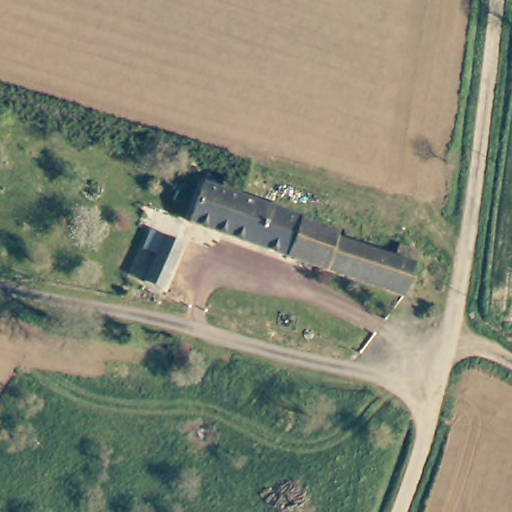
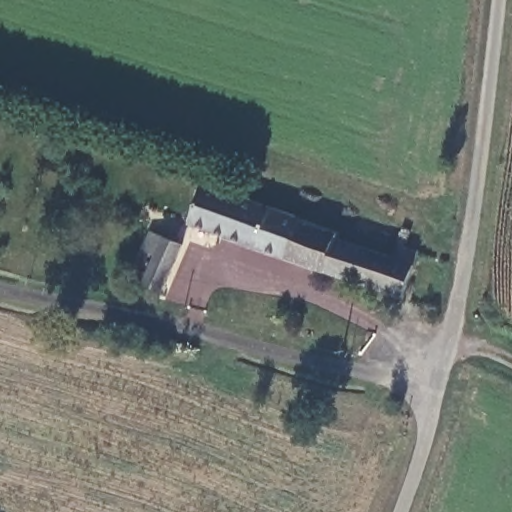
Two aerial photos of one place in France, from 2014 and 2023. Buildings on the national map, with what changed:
unchanged [(416,268),(405,304),(194,231),(208,189),(218,192),(217,197),(398,262),(402,249),(417,255),(413,267),(416,268)]
unchanged [(163,296),(134,283),(156,235),(186,247),(163,296)]

